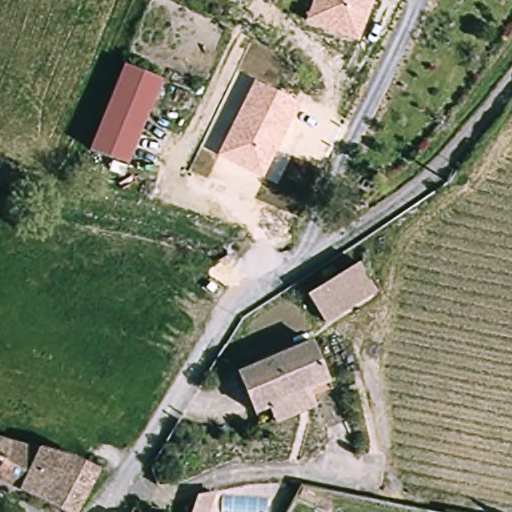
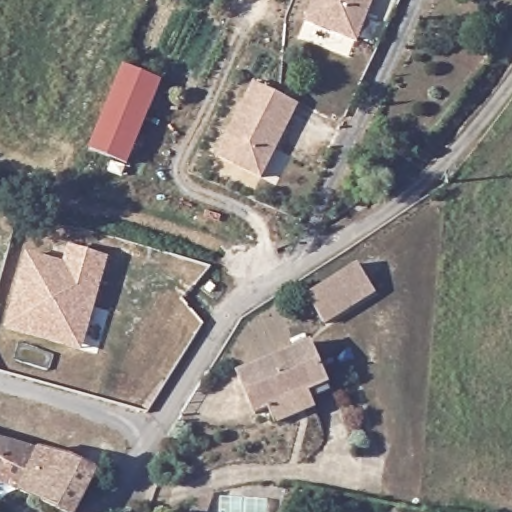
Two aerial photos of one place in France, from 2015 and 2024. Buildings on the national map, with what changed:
unchanged [(304,24),(314,0),(375,0),(365,23),(355,46),(342,40),(304,24)]
unchanged [(130,171),(91,154),(128,70),(167,86),(130,171)]
unchanged [(217,155),(255,81),(299,105),(262,179),(217,155)]
new [(28,253),(66,264),(72,244),(108,255),(87,336),(83,348),(8,327),(12,315),(28,253)]
unchanged [(308,298),(358,264),(376,291),(325,325),(308,298)]
unchanged [(310,395),(315,404),(275,421),(268,407),(255,413),(237,375),(308,342),(326,380),(329,386),(310,395)]
unchanged [(100,471),(78,512),(65,512),(0,481),(0,437),(72,457),(100,471)]
unchanged [(193,496),(211,495),(205,512),(188,512),(193,496)]

